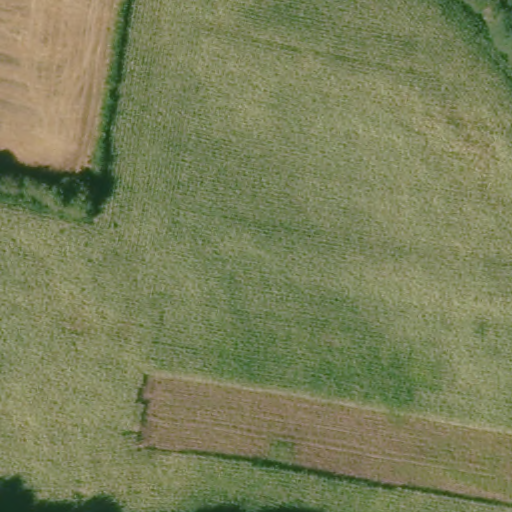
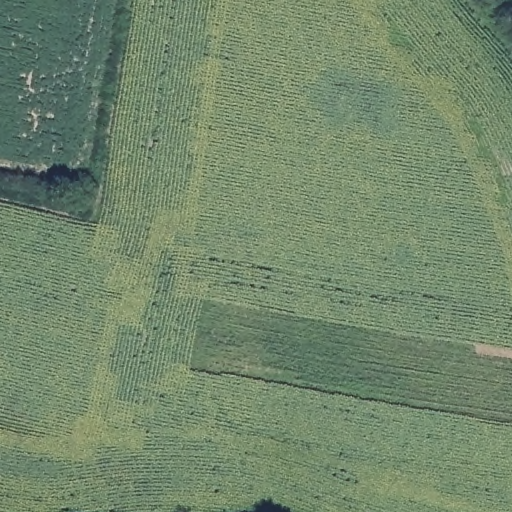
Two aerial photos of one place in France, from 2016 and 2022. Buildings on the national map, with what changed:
[]

